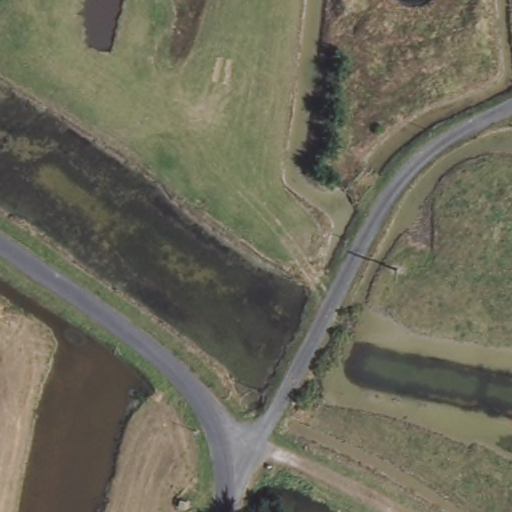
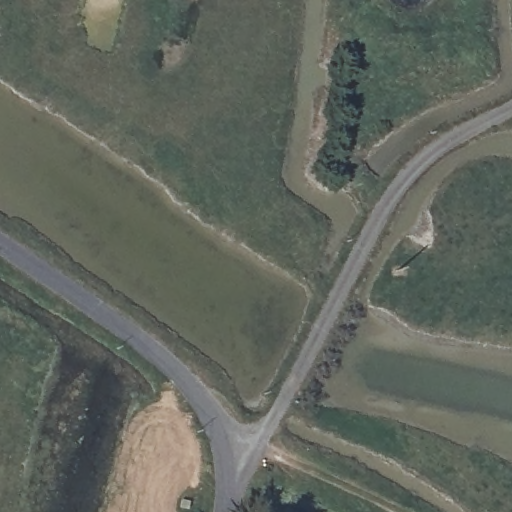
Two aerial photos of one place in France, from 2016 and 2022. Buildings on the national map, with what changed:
[]

